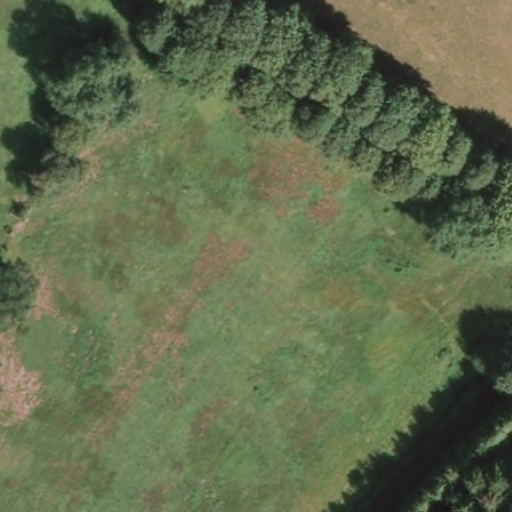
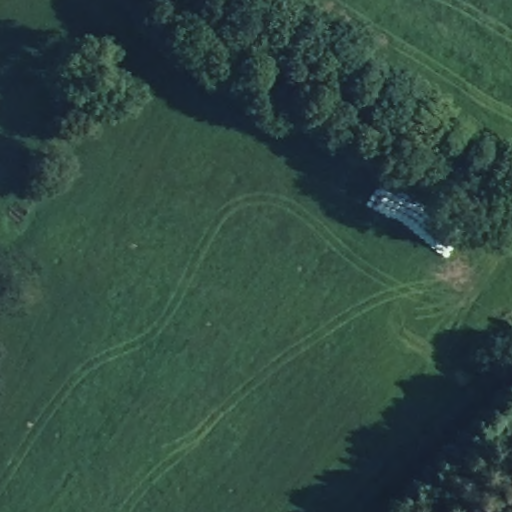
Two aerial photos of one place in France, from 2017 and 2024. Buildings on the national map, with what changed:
[]

